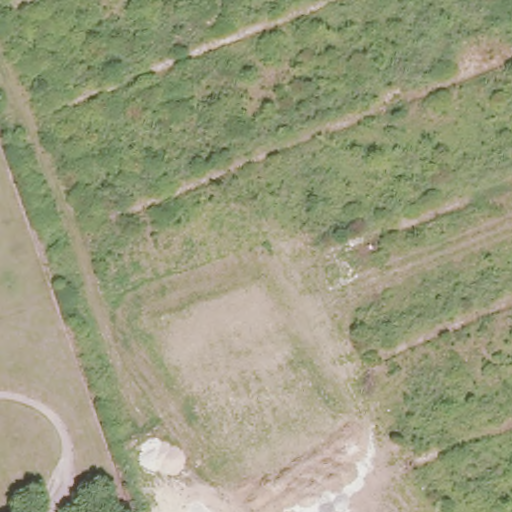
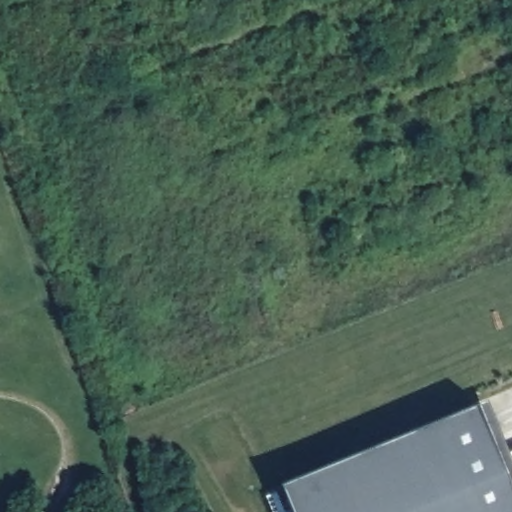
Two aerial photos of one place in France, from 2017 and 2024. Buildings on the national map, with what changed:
new [(491,401),(512,454),(512,512),(294,512),(283,484),(491,401)]

